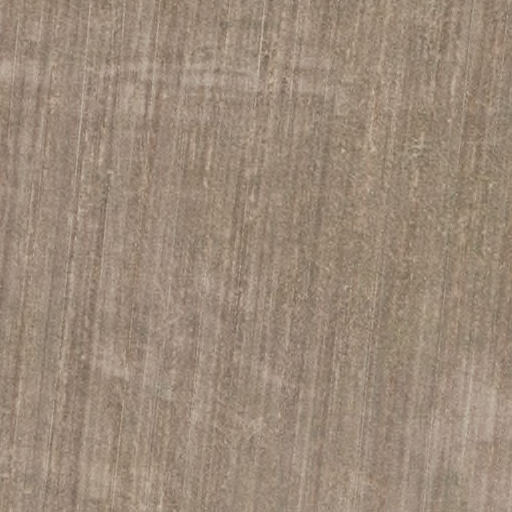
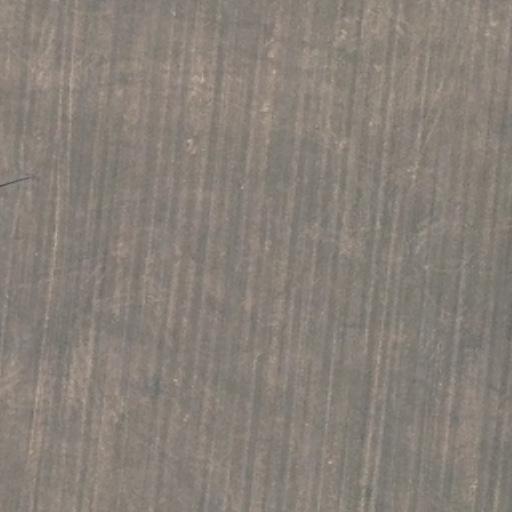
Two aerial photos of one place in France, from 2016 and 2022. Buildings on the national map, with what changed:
[]

